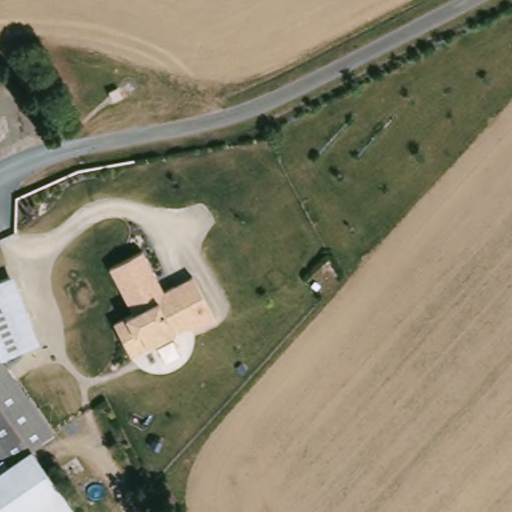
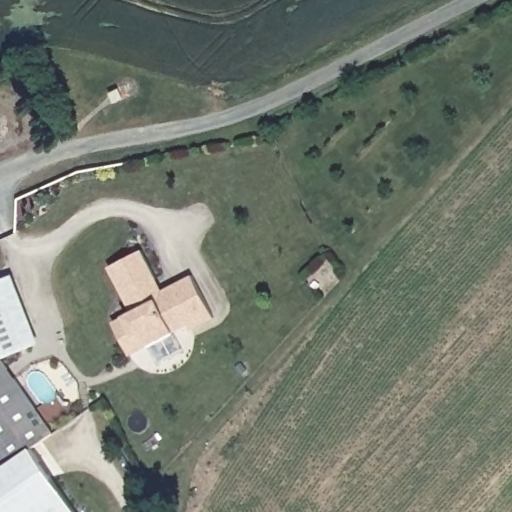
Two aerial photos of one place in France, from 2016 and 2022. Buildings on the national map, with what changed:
unchanged [(166,288),(198,274),(216,317),(176,334),(148,345),(132,355),(116,321),(128,315),(135,311),(112,265),(146,248),(166,288)]
unchanged [(13,280),(39,347),(22,354),(10,359),(48,414),(64,438),(39,454),(78,512),(0,512),(0,479),(11,471),(0,455),(0,285),(13,280)]

